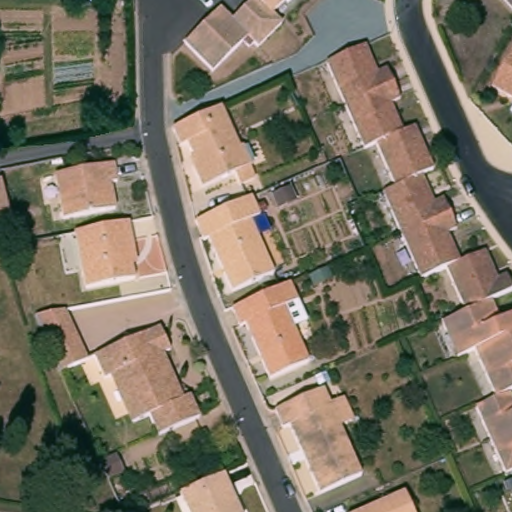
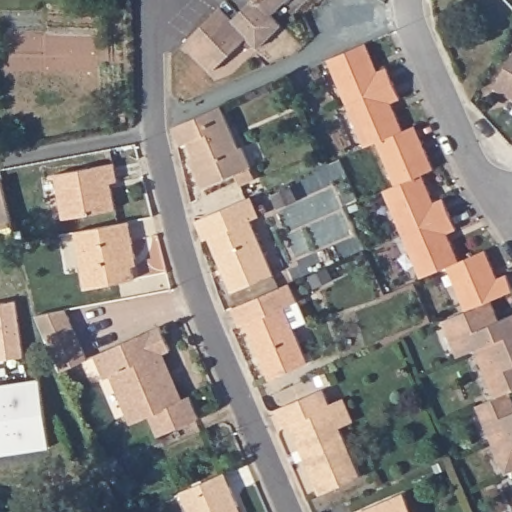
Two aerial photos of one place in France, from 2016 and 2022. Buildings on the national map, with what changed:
unchanged [(289,0),(275,13),(287,24),(275,36),(264,48),(253,37),(219,71),(191,43),(225,8),(238,20),(248,9),(257,0),(289,0)]
unchanged [(447,264),(423,275),(403,231),(384,187),(395,182),(376,138),(364,143),(344,100),(324,56),(344,48),(363,40),(374,68),(384,63),(391,79),(398,94),(389,98),(401,126),(413,121),(433,165),(421,170),(433,198),(443,194),(449,210),(456,225),(447,229),(460,258),(484,247),(497,275),(507,271),(512,283),(512,285),(511,286),(490,295),(489,296),(469,305),(465,306),(447,264)]
unchanged [(497,88),(512,60),(512,97),(497,88)]
unchanged [(178,147),(169,128),(217,107),(236,150),(241,148),(250,167),(248,168),(252,178),(237,185),(233,175),(202,189),(192,167),(194,166),(185,144),(178,147)]
unchanged [(120,161),(124,179),(118,180),(123,206),(71,216),(63,173),(120,161)]
new [(11,229),(9,219),(0,183),(15,180),(24,215),(27,226),(11,229)]
unchanged [(207,243),(198,222),(253,197),(262,218),(254,221),(278,276),(235,295),(212,240),(207,243)]
unchanged [(131,225),(139,262),(134,263),(138,283),(89,292),(78,235),(131,225)]
unchanged [(244,326),(234,306),(292,280),(300,300),(288,306),(312,359),(273,377),(249,323),(244,326)]
unchanged [(512,392),(512,468),(508,470),(493,437),(477,402),(497,393),(475,345),(466,349),(459,352),(452,338),(443,316),(458,309),(465,306),(469,305),(489,296),(494,306),(499,316),(512,310),(512,387),(510,387),(512,392)]
new [(24,357),(0,359),(0,303),(17,301),(24,357)]
unchanged [(45,312),(69,307),(90,357),(64,369),(39,313),(45,312)]
unchanged [(163,324),(173,348),(164,352),(184,397),(193,393),(202,415),(161,433),(152,412),(136,419),(115,371),(107,375),(98,353),(163,324)]
new [(0,455),(0,384),(38,378),(49,447),(0,455)]
unchanged [(290,421),(283,425),(275,408),(324,386),(331,403),(346,396),(354,416),(340,423),(362,473),(322,491),(306,456),(302,447),(290,421)]
unchanged [(227,471),(241,503),(245,512),(190,512),(182,491),(217,475),(227,471)]
unchanged [(405,489),(415,512),(357,512),(405,489)]

